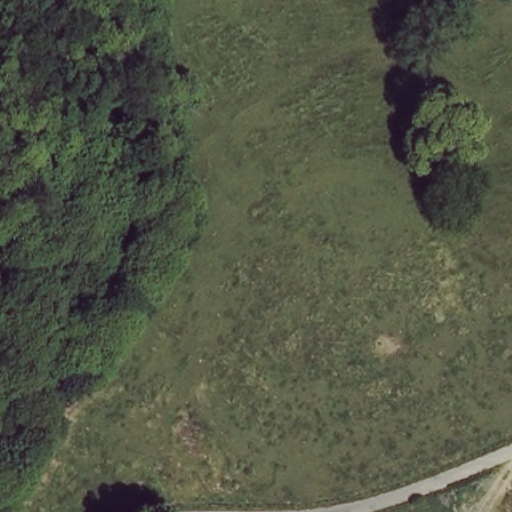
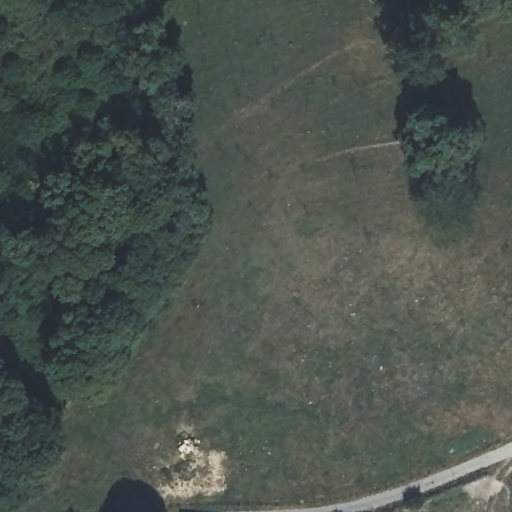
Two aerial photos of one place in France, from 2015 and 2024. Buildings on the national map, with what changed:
unchanged [(124,477),(177,473),(178,509),(142,512),(126,512),(124,477)]

